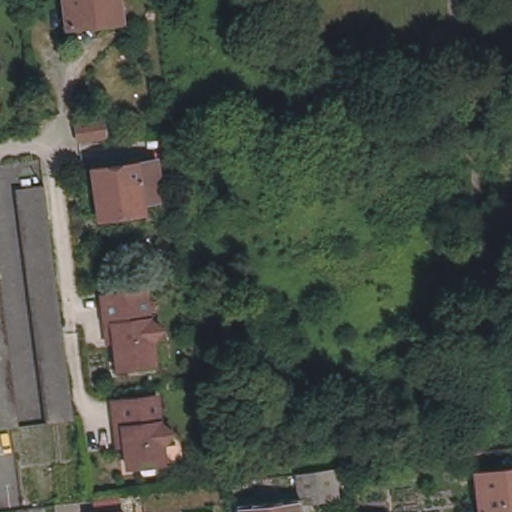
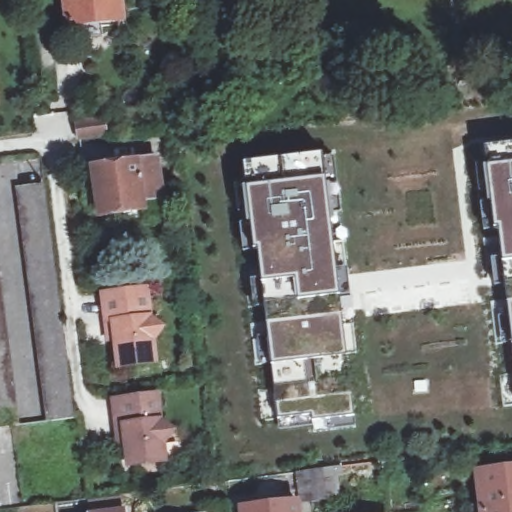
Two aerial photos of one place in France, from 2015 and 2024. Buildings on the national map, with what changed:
unchanged [(106,20),(107,29),(72,34),(68,0),(121,0),(124,17),(106,20)]
unchanged [(81,140),(79,122),(102,119),(107,117),(109,130),(110,136),(81,140)]
new [(512,144),(512,339),(502,262),(498,229),(495,230),(487,169),(484,147),(512,144)]
unchanged [(116,224),(114,215),(113,210),(96,212),(89,161),(132,157),(154,155),(156,173),(159,195),(147,196),(149,202),(142,203),(142,207),(144,221),(116,224)]
new [(322,155),(326,180),(341,296),(347,357),(355,415),(355,427),(330,429),(329,419),(315,421),(314,415),(309,415),(310,424),(280,428),(278,419),(271,365),(262,285),(259,249),(255,249),(247,188),(244,164),(322,155)]
unchanged [(75,410),(76,417),(48,421),(19,189),(46,185),(57,276),(75,410)]
unchanged [(0,238),(3,262),(0,263),(0,238)]
unchanged [(22,412),(24,424),(21,425),(0,428),(0,263),(3,262),(22,412)]
unchanged [(152,297),(156,326),(170,337),(159,350),(162,372),(126,376),(120,332),(112,332),(109,303),(152,297)]
unchanged [(162,403),(166,430),(181,441),(169,453),(171,470),(134,475),(129,436),(122,437),(119,410),(162,403)]
unchanged [(297,470),(315,467),(334,465),(337,496),(319,498),(301,501),(297,470)]
unchanged [(483,471),(512,467),(512,512),(488,512),(483,471)]
unchanged [(245,506),(296,499),(297,512),(245,512),(245,506)]

